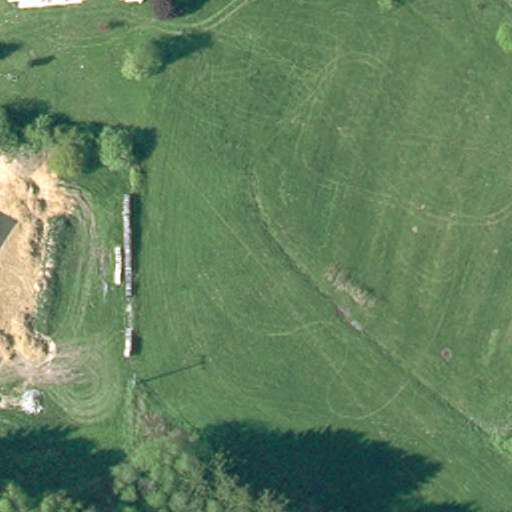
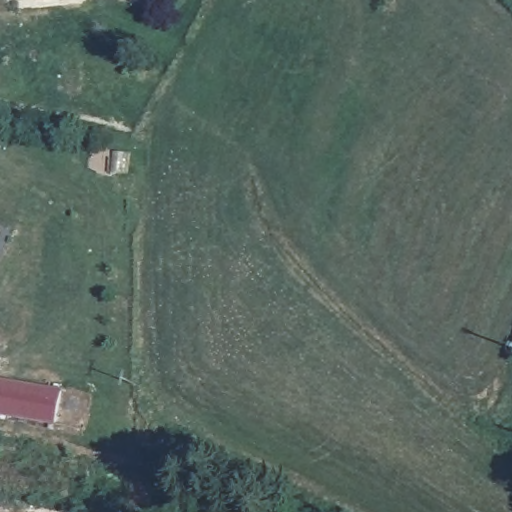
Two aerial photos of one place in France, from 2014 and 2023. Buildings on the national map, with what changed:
new [(63,389),(58,425),(0,415),(0,379),(63,389)]

